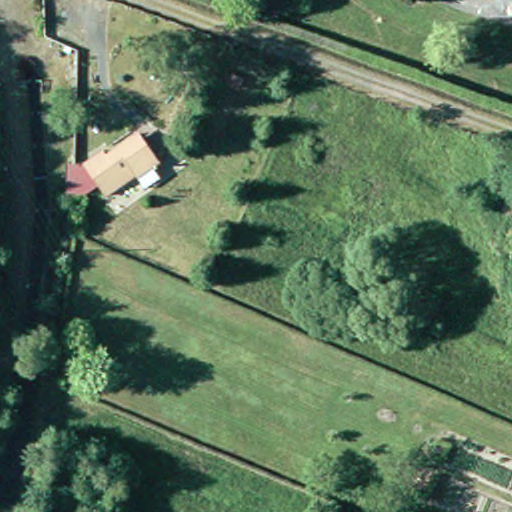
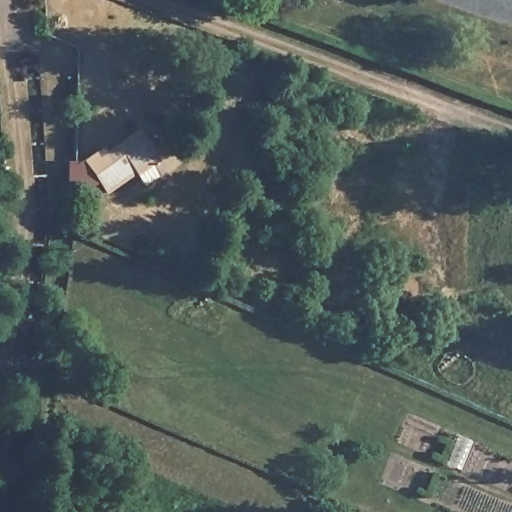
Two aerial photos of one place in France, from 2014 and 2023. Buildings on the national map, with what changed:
unchanged [(79,155),(101,140),(104,144),(123,130),(129,125),(140,142),(151,159),(156,167),(139,178),(134,171),(104,191),(96,178),(83,186),(73,181),(73,160),(79,155)]

